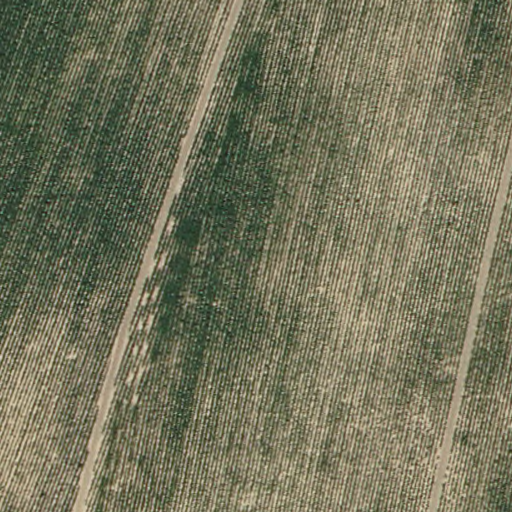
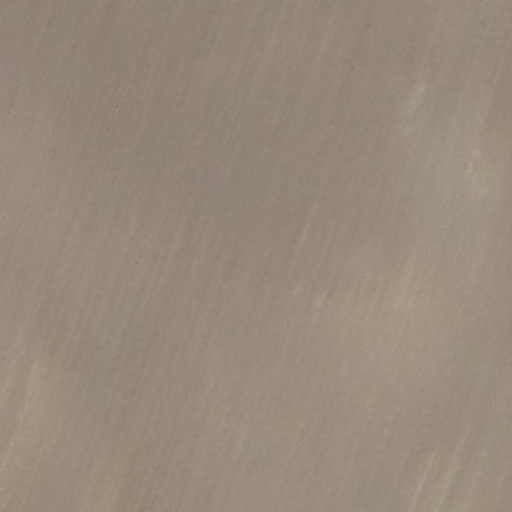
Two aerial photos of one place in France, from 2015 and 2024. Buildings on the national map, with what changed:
[]

